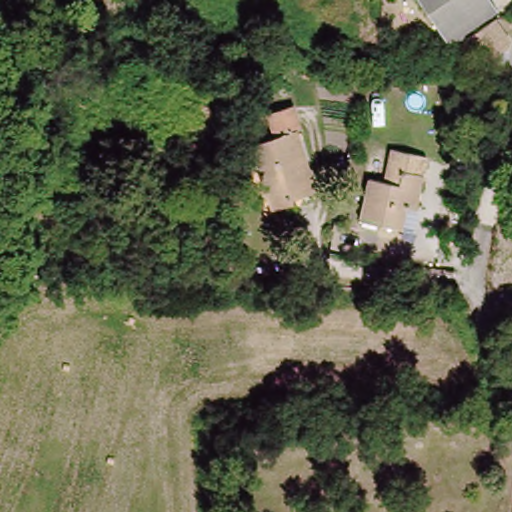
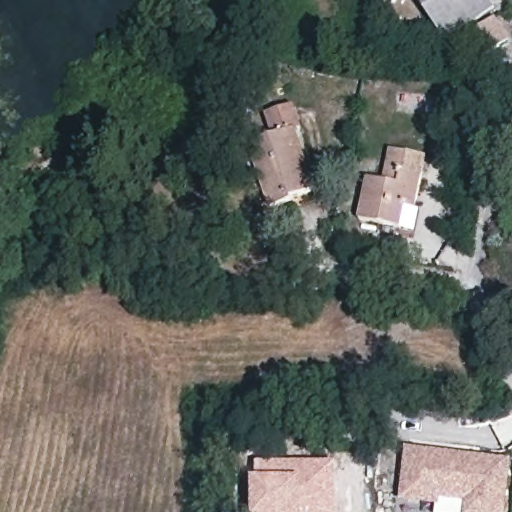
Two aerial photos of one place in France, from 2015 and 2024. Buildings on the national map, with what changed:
unchanged [(442,40),(415,0),(488,0),(495,10),(442,40)]
unchanged [(504,42),(475,61),(461,40),(491,21),(500,35),(504,42)]
unchanged [(507,165),(507,159),(500,157),(512,103),(512,165),(507,165)]
unchanged [(317,196),(293,204),(294,206),(272,213),(252,150),(274,142),(267,118),(294,110),(303,133),(298,136),(317,196)]
unchanged [(364,179),(390,184),(400,150),(420,155),(407,207),(399,207),(393,226),(353,219),(364,179)]
new [(405,448),(505,458),(499,512),(466,512),(468,493),(435,490),(434,500),(400,496),(405,448)]
new [(256,462),(337,461),(337,512),(254,512),(253,498),(256,462)]

